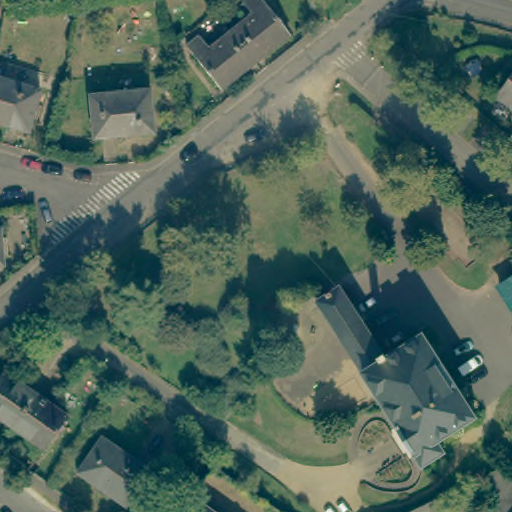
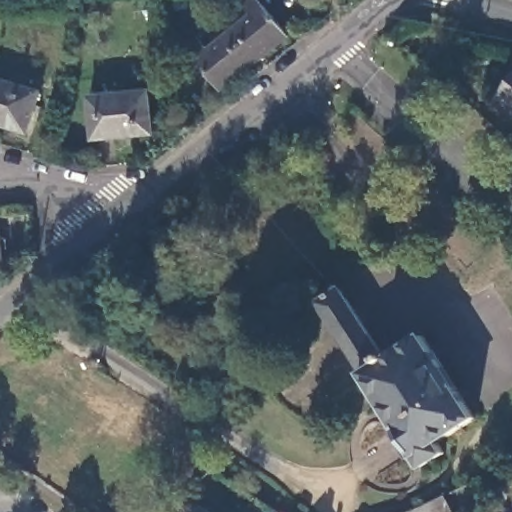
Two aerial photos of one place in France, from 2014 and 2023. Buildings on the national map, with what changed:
unchanged [(251,15),(242,4),(246,0),(260,0),(289,36),(255,62),(230,32),(251,15)]
unchanged [(255,62),(220,90),(186,48),(199,38),(208,50),(230,32),(255,62)]
unchanged [(39,92),(26,134),(0,125),(0,80),(39,92)]
unchanged [(512,80),(512,110),(497,99),(512,80)]
unchanged [(85,91),(144,87),(147,130),(88,135),(85,91)]
unchanged [(3,263),(0,263),(0,227),(3,263)]
demolished [(512,274),(512,310),(510,311),(495,284),(512,274)]
unchanged [(314,302),(335,288),(380,359),(418,335),(471,417),(433,442),(439,452),(418,465),(314,302)]
demolished [(13,430),(0,421),(0,376),(2,372),(36,396),(13,430)]
demolished [(66,417),(43,450),(13,430),(36,396),(66,417)]
unchanged [(75,473),(100,438),(149,472),(124,508),(75,473)]
unchanged [(411,512),(444,495),(453,512),(411,512)]
unchanged [(210,512),(189,512),(196,502),(210,512)]

